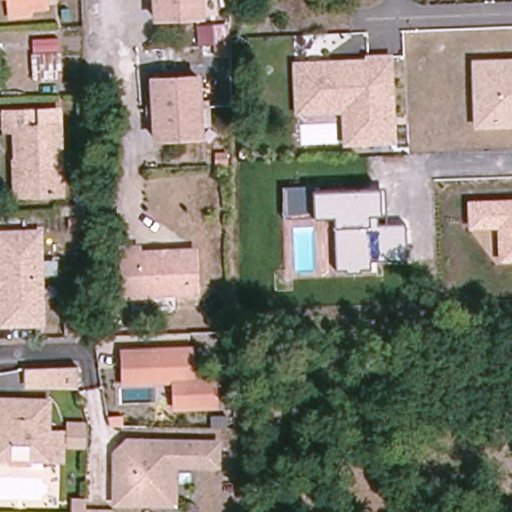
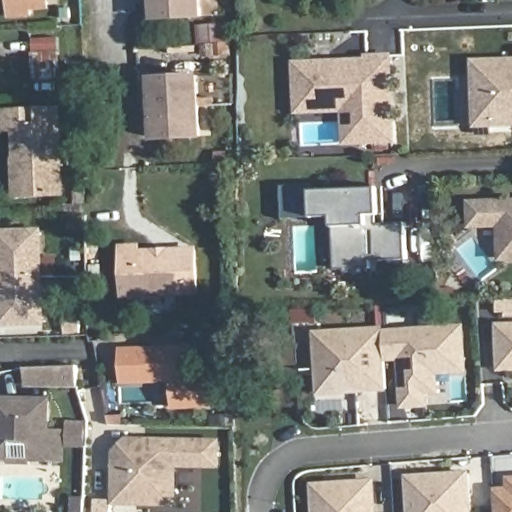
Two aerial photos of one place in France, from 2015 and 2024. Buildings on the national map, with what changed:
unchanged [(30,5),(31,13),(11,15),(9,0),(30,0),(30,5)]
unchanged [(202,16),(156,18),(155,0),(201,0),(202,16)]
unchanged [(71,12),(72,18),(64,19),(63,13),(71,12)]
unchanged [(34,40),(60,38),(60,51),(35,52),(34,40)]
unchanged [(342,146),(341,114),(294,115),(291,62),(366,58),(366,53),(392,53),(398,144),(342,146)]
unchanged [(36,80),(34,57),(60,56),(61,79),(36,80)]
unchanged [(471,59),(512,58),(512,127),(474,129),(471,59)]
unchanged [(162,100),(155,100),(155,99),(154,78),(200,76),(201,106),(162,107),(162,100)]
unchanged [(163,115),(162,107),(201,106),(202,135),(156,138),(155,116),(155,115),(163,115)]
unchanged [(22,196),(21,158),(13,159),(12,130),(1,130),(1,112),(32,111),(32,126),(56,125),(58,194),(22,196)]
unchanged [(407,260),(371,261),(371,270),(361,270),(361,273),(346,274),(346,270),(336,271),(335,228),(334,216),(314,217),(283,218),(282,186),(314,184),(313,192),(377,189),(384,189),(385,213),(381,214),(375,214),(376,226),(405,225),(407,260)]
unchanged [(496,229),(468,231),(466,201),(512,199),(512,262),(499,263),(496,229)]
unchanged [(0,325),(0,229),(42,227),(45,324),(0,325)]
unchanged [(126,298),(125,251),(141,251),(141,256),(157,255),(160,259),(167,258),(170,255),(198,254),(199,297),(126,298)]
new [(464,347),(466,371),(454,372),(437,373),(438,392),(426,393),(427,405),(404,407),(401,359),(386,360),(384,333),(463,327),(464,347)]
new [(499,354),(499,346),(498,328),(512,327),(512,370),(500,371),(499,354)]
new [(319,374),(316,334),(384,329),(384,333),(386,360),(388,389),(339,392),(320,393),(319,374)]
unchanged [(194,374),(216,374),(218,409),(171,411),(170,383),(121,384),(119,346),(194,345),(194,374)]
unchanged [(77,388),(27,386),(26,368),(78,365),(77,388)]
unchanged [(64,460),(34,459),(34,464),(8,463),(8,458),(0,458),(0,396),(52,397),(51,429),(66,429),(64,460)]
unchanged [(128,437),(221,437),(220,466),(175,466),(175,503),(110,503),(112,451),(128,437)]
new [(468,475),(470,512),(411,512),(408,479),(468,475)]
new [(509,479),(512,478),(512,512),(495,512),(494,490),(509,489),(509,479)]
new [(369,482),(370,512),(315,512),(314,485),(369,482)]

